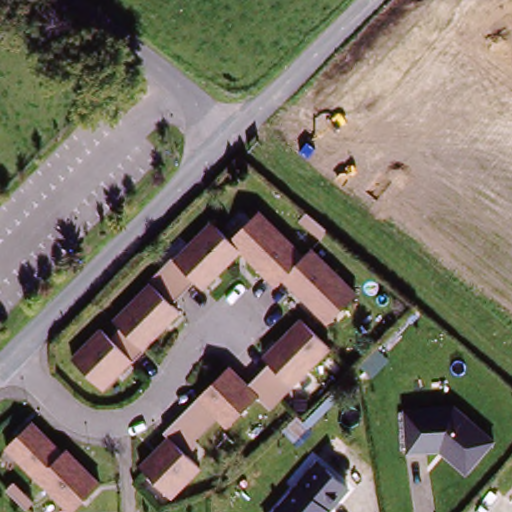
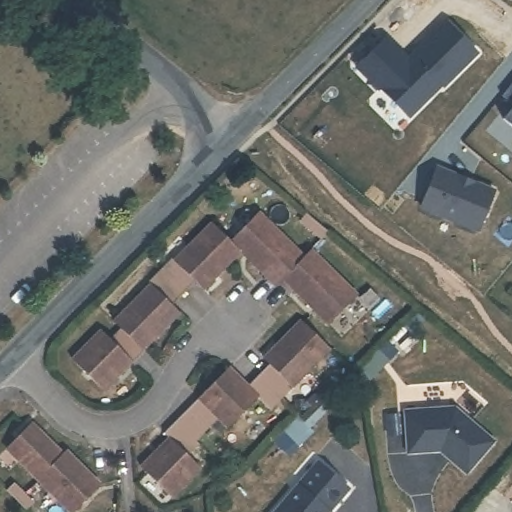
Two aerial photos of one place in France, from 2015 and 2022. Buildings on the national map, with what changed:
new [(388,37),(409,60),(447,22),(479,54),(446,87),(444,85),(412,117),(383,89),(381,91),(358,67),(388,37)]
new [(512,84),(512,103),(503,96),(512,84)]
new [(512,110),(512,125),(504,119),(512,110)]
new [(439,167),(495,191),(479,230),(423,206),(439,167)]
unchanged [(263,277),(238,252),(228,241),(256,212),(301,258),(280,281),(273,287),(263,277)]
unchanged [(329,234),(323,242),(301,222),(308,215),(329,234)]
unchanged [(201,291),(194,284),(183,295),(160,271),(171,260),(173,262),(211,224),(228,241),(238,252),(201,291)]
unchanged [(301,258),(309,251),(354,297),(326,327),(291,291),(281,281),(280,281),(301,258)]
unchanged [(183,295),(173,306),(179,313),(142,351),(121,329),(114,322),(151,285),(149,282),(160,271),(183,295)]
unchanged [(306,322),(333,351),(283,400),(261,375),(271,366),(266,361),(306,322)]
unchanged [(144,352),(133,362),(131,364),(129,363),(101,392),(71,361),(99,332),(109,342),(121,329),(142,351),(144,352)]
unchanged [(378,352),(389,362),(374,377),(364,367),(378,352)]
unchanged [(199,470),(171,498),(141,467),(170,438),(165,433),(178,421),(188,410),(195,403),(200,398),(231,368),(248,387),(261,375),(283,400),(271,412),(259,398),(228,429),(219,418),(208,430),(196,441),(199,445),(188,457),(199,470)]
unchanged [(415,408),(464,406),(504,441),(474,473),(459,459),(461,457),(451,447),(449,450),(417,452),(415,408)]
unchanged [(61,455),(36,481),(5,450),(31,424),(61,455)]
unchanged [(61,455),(64,452),(98,486),(72,512),(67,512),(36,481),(61,455)]
unchanged [(320,462),(351,488),(333,512),(281,512),(320,462)]
unchanged [(18,510),(8,501),(0,493),(0,488),(4,483),(14,493),(24,503),(18,510)]

